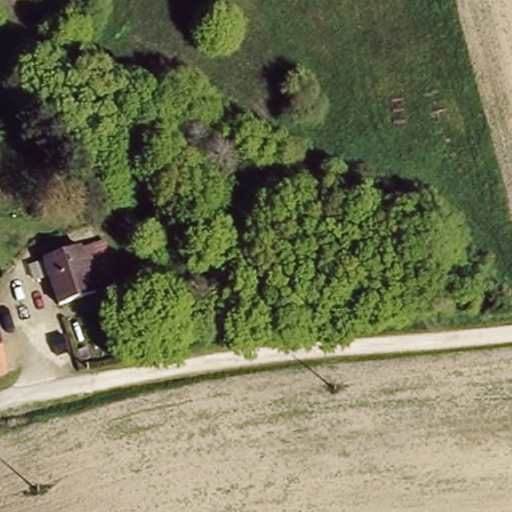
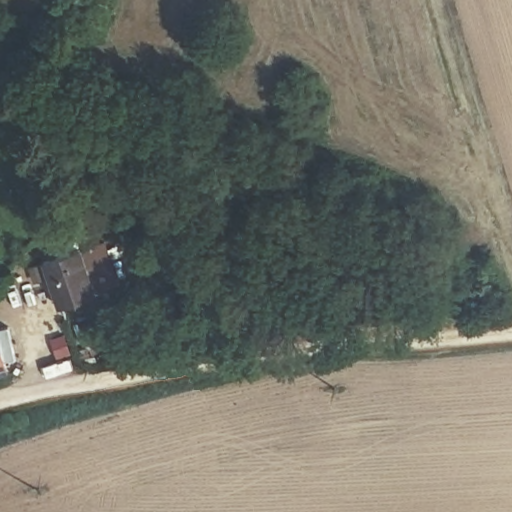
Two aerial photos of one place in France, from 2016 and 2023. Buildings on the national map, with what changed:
unchanged [(107,237),(123,285),(59,305),(42,257),(107,237)]
unchanged [(7,361),(10,372),(0,376),(0,335),(7,361)]

